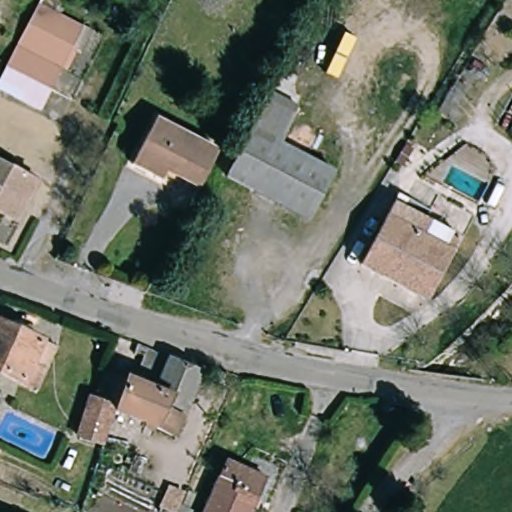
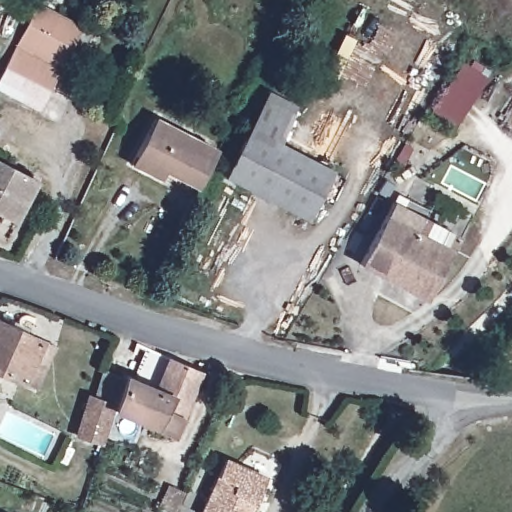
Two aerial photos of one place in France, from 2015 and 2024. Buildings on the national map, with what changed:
unchanged [(10,61),(42,0),(60,0),(57,6),(88,24),(57,84),(10,61)]
unchanged [(45,105),(0,81),(10,61),(57,84),(45,105)]
new [(456,126),(432,110),(464,63),(488,80),(456,126)]
unchanged [(227,177),(270,94),(297,107),(279,143),(335,172),(310,221),(227,177)]
unchanged [(132,162),(136,154),(157,115),(220,149),(200,188),(165,170),(160,179),(132,162)]
unchanged [(16,229),(0,220),(0,157),(42,179),(16,229)]
unchanged [(362,260),(395,203),(402,192),(430,209),(423,220),(460,240),(453,254),(427,298),(362,260)]
unchanged [(22,380),(0,370),(0,317),(42,337),(55,343),(35,385),(22,380)]
unchanged [(79,435),(73,433),(91,393),(97,395),(110,368),(125,375),(130,377),(132,375),(162,389),(176,358),(205,371),(176,435),(120,410),(122,407),(118,405),(103,440),(82,430),(79,435)]
unchanged [(263,387),(257,400),(232,388),(238,375),(263,387)]
unchanged [(230,460),(270,478),(256,512),(207,512),(230,460)]
unchanged [(182,506),(195,512),(179,512),(182,506)]

